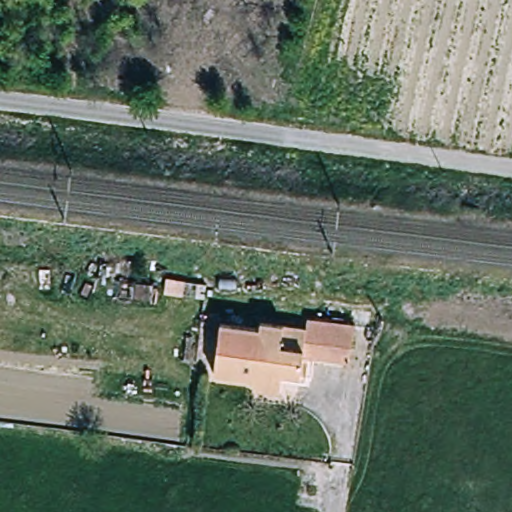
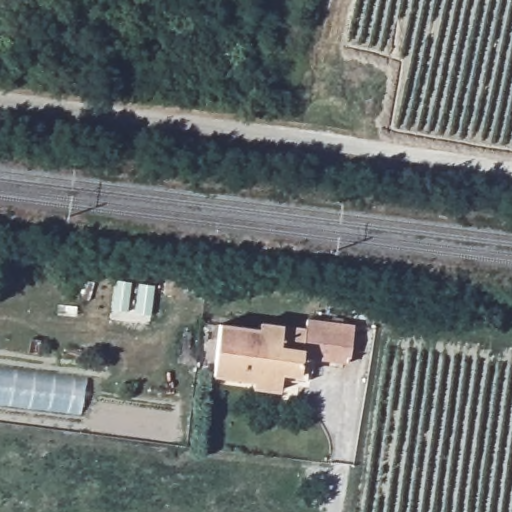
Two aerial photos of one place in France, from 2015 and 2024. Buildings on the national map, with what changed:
demolished [(112,278),(145,281),(140,303),(110,299),(112,278)]
new [(116,280),(132,283),(127,312),(111,310),(116,280)]
new [(155,286),(151,315),(135,313),(139,284),(155,286)]
unchanged [(253,387),(253,381),(213,376),(220,325),(259,330),(260,324),(305,330),(307,320),(355,326),(350,363),(303,357),(301,376),(281,373),(278,391),(253,387)]
new [(81,414),(0,404),(0,368),(85,380),(81,414)]

